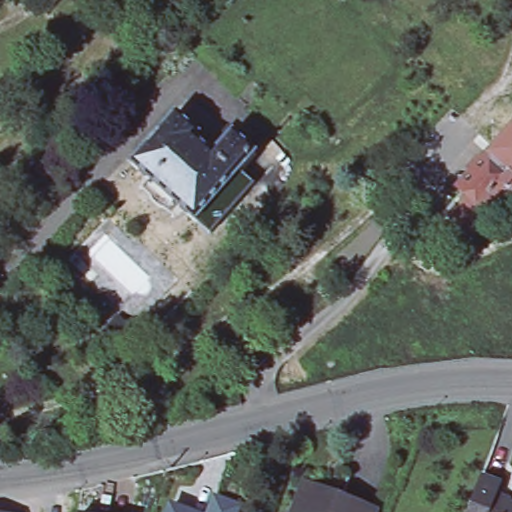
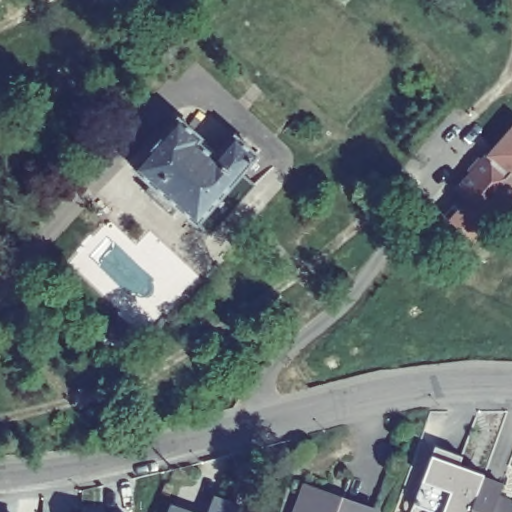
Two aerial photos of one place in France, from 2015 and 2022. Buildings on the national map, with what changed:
unchanged [(136,167),(180,116),(221,153),(226,147),(222,141),(231,130),(257,154),(243,170),(199,221),(136,167)]
unchanged [(493,220),(467,249),(440,228),(467,198),(455,187),(469,172),(466,169),(479,155),(482,158),(488,154),(512,127),(512,199),(493,220)]
unchanged [(213,233),(199,221),(243,170),(257,185),(213,233)]
new [(422,480),(432,454),(436,446),(462,455),(459,465),(484,473),(481,480),(483,479),(471,512),(433,512),(413,504),(422,480)]
unchanged [(497,502),(512,507),(512,512),(471,512),(483,479),(503,486),(497,502)]
unchanged [(378,512),(298,512),(308,485),(378,511),(378,512)]
unchanged [(243,505),(240,512),(214,512),(220,496),(243,505)]
unchanged [(198,512),(172,512),(176,503),(198,512)]

